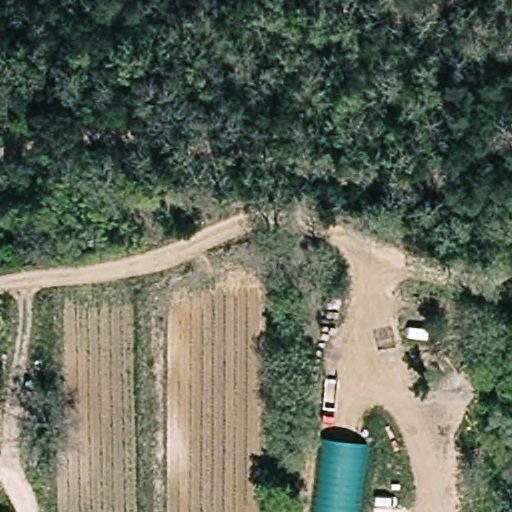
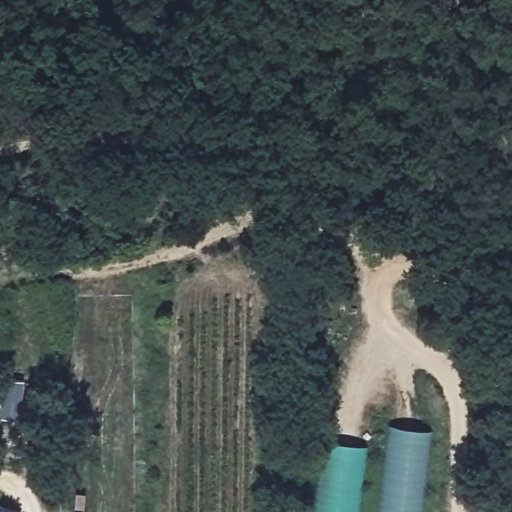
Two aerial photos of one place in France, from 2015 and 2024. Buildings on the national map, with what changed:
new [(430,430),(419,512),(377,512),(387,424),(430,430)]
unchanged [(318,512),(328,442),(363,446),(354,512),(318,512)]

